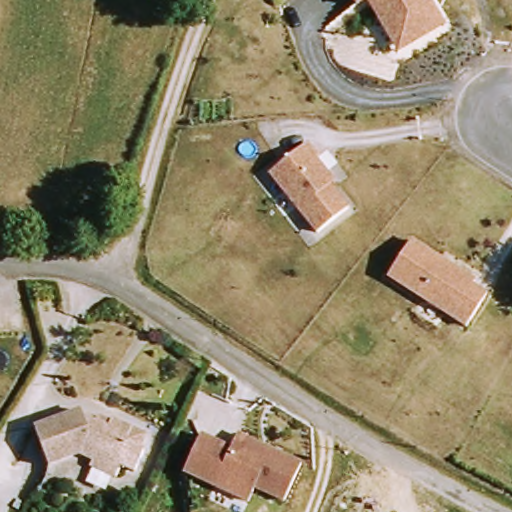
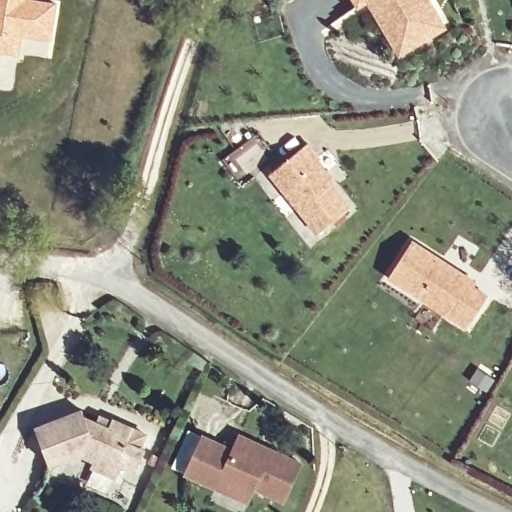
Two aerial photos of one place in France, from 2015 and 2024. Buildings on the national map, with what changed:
new [(50,41),(22,35),(19,55),(0,52),(0,0),(51,0),(57,1),(50,41)]
unchanged [(355,11),(349,0),(427,0),(438,18),(396,41),(372,0),(355,11)]
unchanged [(266,173),(303,144),(324,173),(320,179),(345,207),(312,233),(266,173)]
unchanged [(415,238),(477,278),(472,286),(490,299),(468,332),(387,279),(415,238)]
unchanged [(70,411),(75,417),(99,421),(101,411),(122,415),(139,418),(137,433),(141,434),(138,456),(123,453),(120,467),(93,463),(94,455),(77,454),(70,460),(53,473),(39,453),(30,439),(70,411)]
unchanged [(200,435),(230,449),(235,436),(301,464),(281,503),(252,491),(245,503),(181,473),(200,435)]

